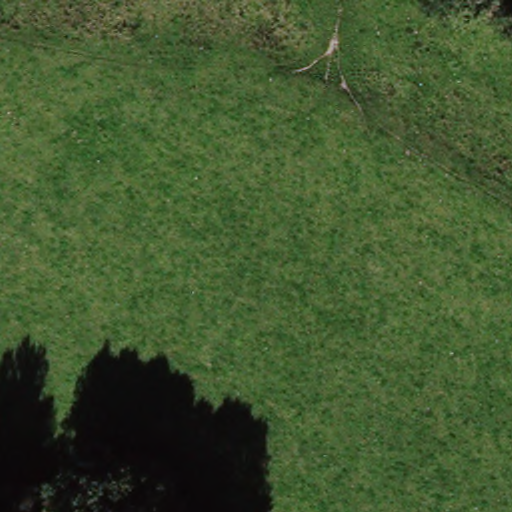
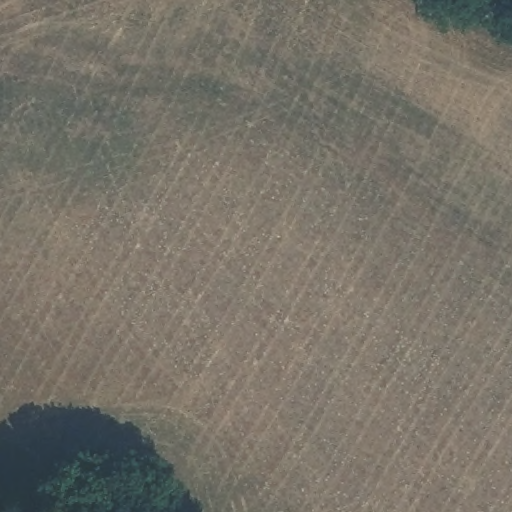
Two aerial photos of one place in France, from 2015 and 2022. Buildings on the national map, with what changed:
[]

